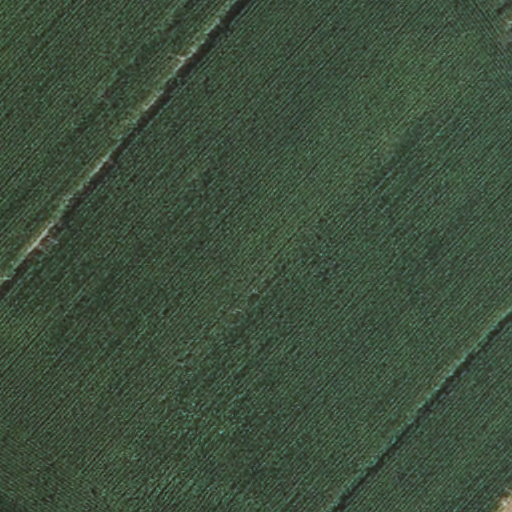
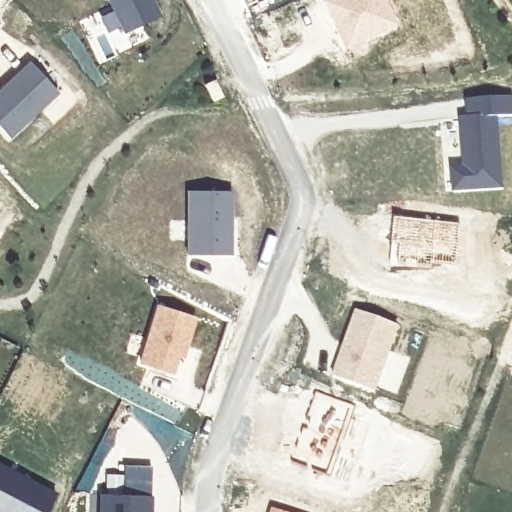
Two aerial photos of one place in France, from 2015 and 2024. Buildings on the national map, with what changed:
new [(161,16),(125,34),(109,0),(153,0),(161,16)]
new [(399,24),(345,49),(323,0),(388,0),(399,24)]
new [(0,128),(0,89),(29,63),(56,94),(8,136),(0,128)]
new [(448,167),(461,166),(457,119),(465,118),(464,100),(511,96),(512,115),(497,116),(501,187),(451,191),(448,167)]
new [(186,189),(233,190),(232,255),(185,254),(186,189)]
new [(156,302),(198,316),(183,360),(180,358),(173,375),(136,363),(156,302)]
new [(397,395),(376,387),(375,391),(329,375),(354,308),(400,325),(392,349),(411,356),(397,395)]
new [(57,492),(46,512),(0,512),(0,462),(57,492)]
new [(148,498),(147,512),(99,512),(99,495),(148,498)]
new [(288,512),(269,512),(271,507),(288,512)]

